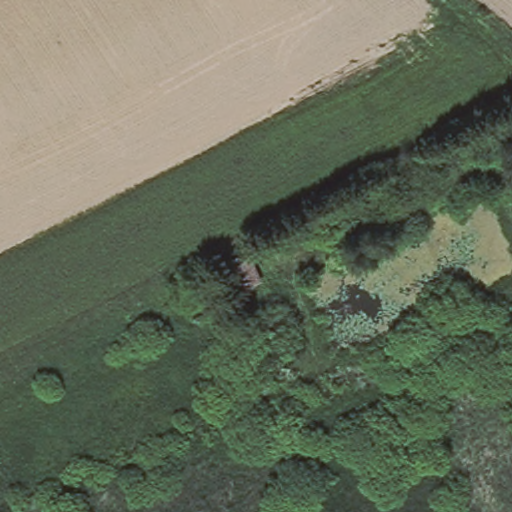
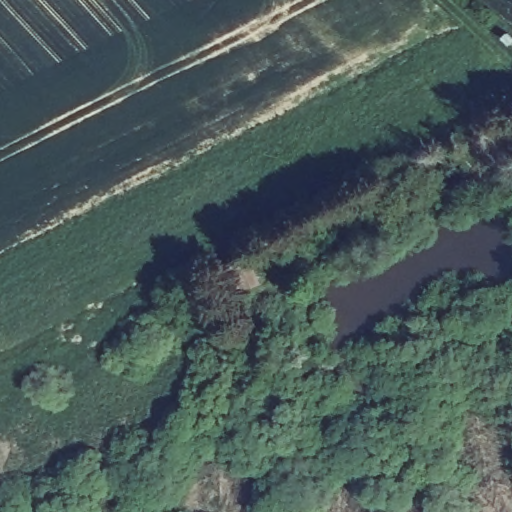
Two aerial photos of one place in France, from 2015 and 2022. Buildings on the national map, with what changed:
unchanged [(224,302),(210,263),(252,246),(267,288),(224,302)]

